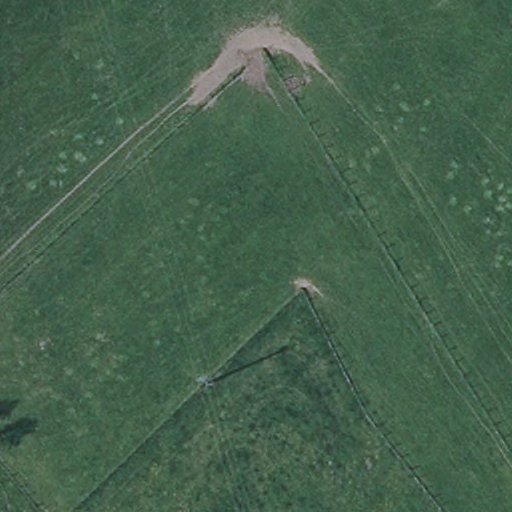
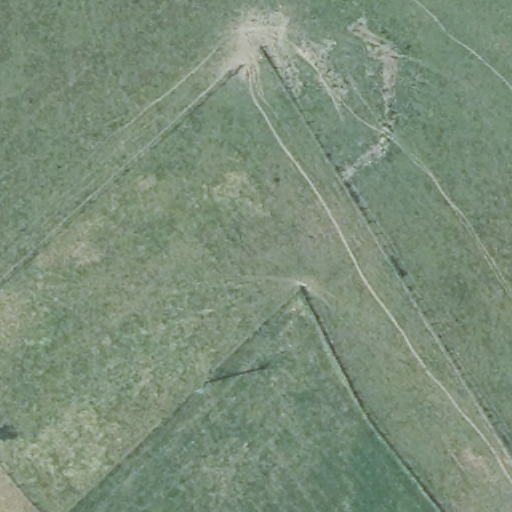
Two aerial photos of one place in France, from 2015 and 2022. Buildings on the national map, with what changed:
[]

